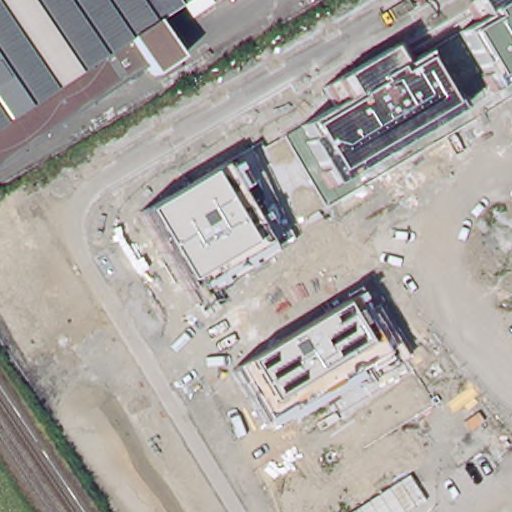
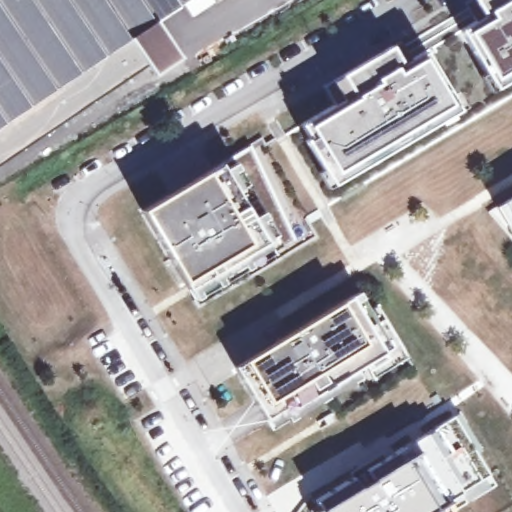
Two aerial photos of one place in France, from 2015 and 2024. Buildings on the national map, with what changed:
unchanged [(186,54),(160,71),(155,64),(0,168),(0,0),(189,0),(162,19),(186,54)]
unchanged [(496,89),(460,33),(483,18),(472,0),(512,0),(512,80),(496,89)]
unchanged [(390,49),(400,67),(423,54),(459,110),(332,185),(307,142),(310,139),(302,126),(337,106),(325,87),(390,49)]
unchanged [(142,213),(250,149),(292,239),(192,303),(142,213)]
new [(512,199),(512,214),(505,203),(512,199)]
unchanged [(233,369),(343,304),(340,298),(355,289),(368,310),(375,306),(407,357),(373,379),(367,372),(289,420),(285,417),(269,427),(233,369)]
new [(317,509),(416,449),(409,438),(458,409),(471,431),(497,484),(455,508),(450,501),(431,512),(310,512),(317,509)]
new [(409,438),(416,449),(317,509),(310,499),(409,438)]

